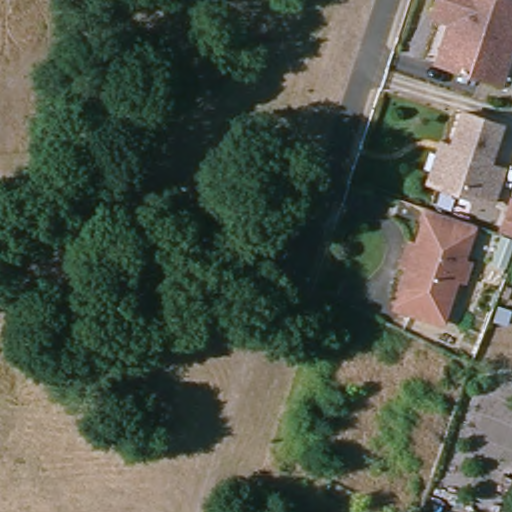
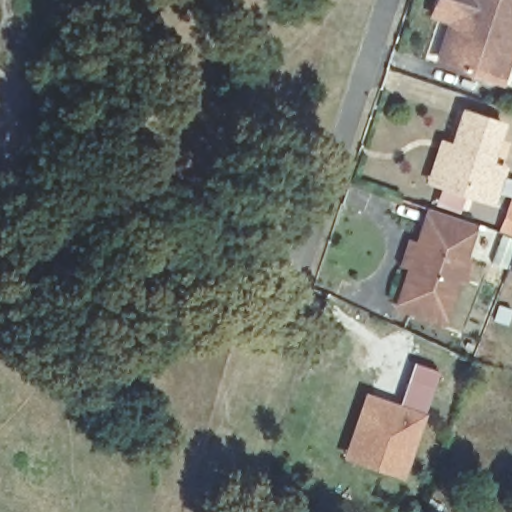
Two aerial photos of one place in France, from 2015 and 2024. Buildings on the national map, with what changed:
unchanged [(455,69),(468,28),(445,20),(452,0),(512,0),(512,88),(495,82),(455,69)]
unchanged [(466,151),(478,117),(512,129),(512,145),(503,169),(512,173),(512,190),(505,209),(490,204),(441,187),(455,148),(466,151)]
unchanged [(442,323),(426,318),(411,313),(415,299),(443,214),(489,229),(478,265),(484,267),(478,284),(472,283),(462,314),(457,328),(442,323)]
new [(342,460),(365,392),(399,404),(413,363),(437,371),(424,413),(426,414),(403,479),(342,460)]

